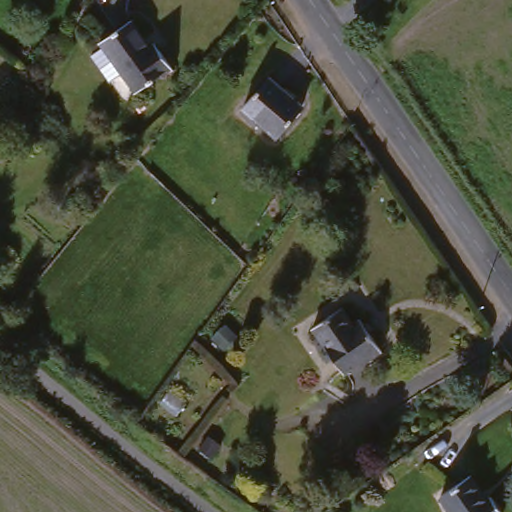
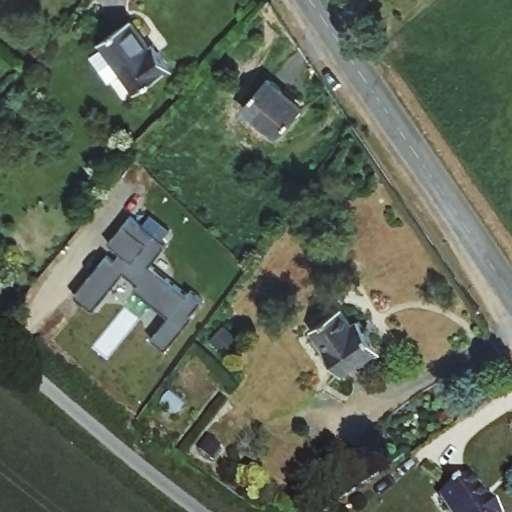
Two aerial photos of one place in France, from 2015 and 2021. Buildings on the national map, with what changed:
unchanged [(108,40),(106,35),(135,16),(152,48),(159,45),(173,67),(137,89),(125,69),(112,75),(96,47),(108,40)]
unchanged [(241,102),(268,72),(300,100),(276,131),(241,102)]
new [(112,253),(119,259),(125,252),(113,241),(136,214),(172,244),(156,263),(192,293),(195,289),(208,299),(197,313),(199,315),(170,350),(155,338),(173,315),(139,287),(143,282),(129,271),(98,309),(78,294),(112,253)]
unchanged [(309,328),(341,306),(377,355),(359,368),(354,362),(340,372),(309,328)]
unchanged [(464,467),(483,491),(492,485),(502,501),(488,512),(454,512),(436,487),(464,467)]

